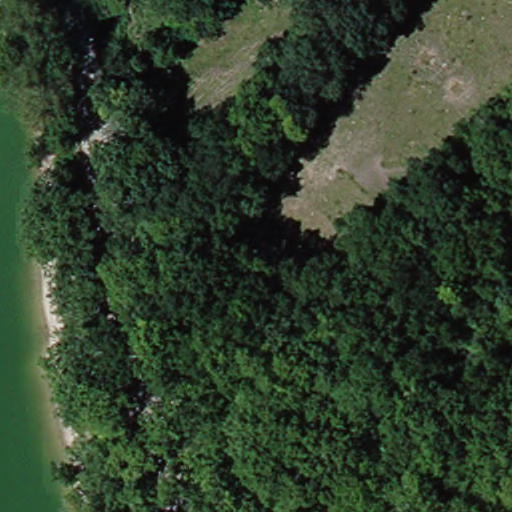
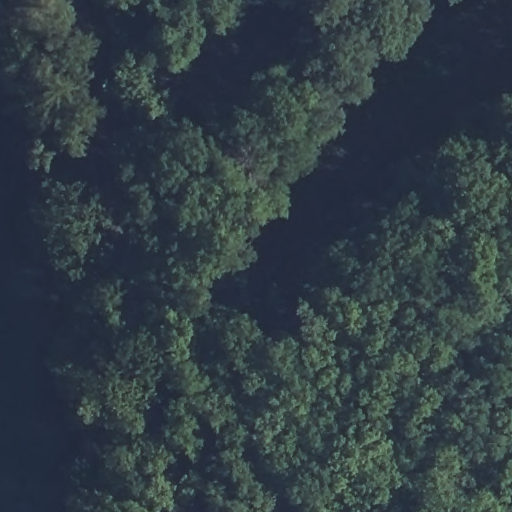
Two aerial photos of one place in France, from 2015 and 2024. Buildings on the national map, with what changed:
[]

